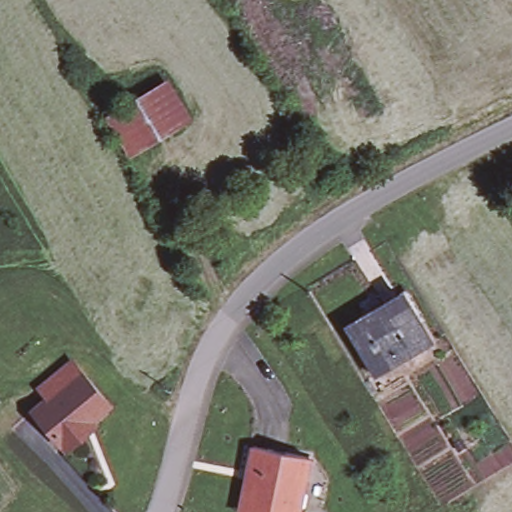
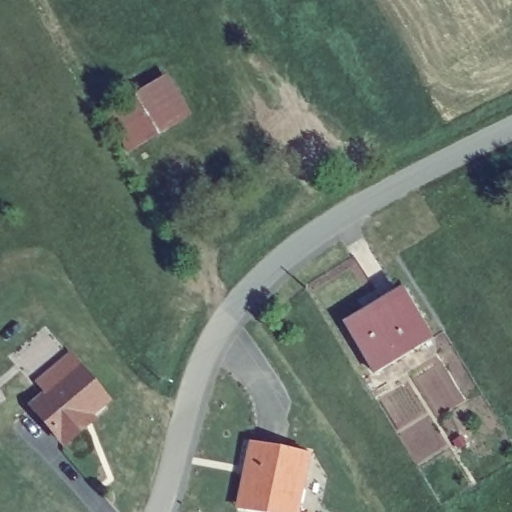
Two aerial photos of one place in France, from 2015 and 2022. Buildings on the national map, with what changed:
unchanged [(103,111),(170,74),(192,113),(130,155),(103,111)]
unchanged [(364,305),(366,310),(404,288),(430,334),(374,367),(344,317),(364,305)]
unchanged [(90,426),(93,429),(73,444),(43,406),(59,393),(51,383),(83,358),(91,368),(119,403),(90,426)]
unchanged [(251,440),(308,452),(295,512),(260,512),(244,509),(236,507),(245,465),(251,440)]

